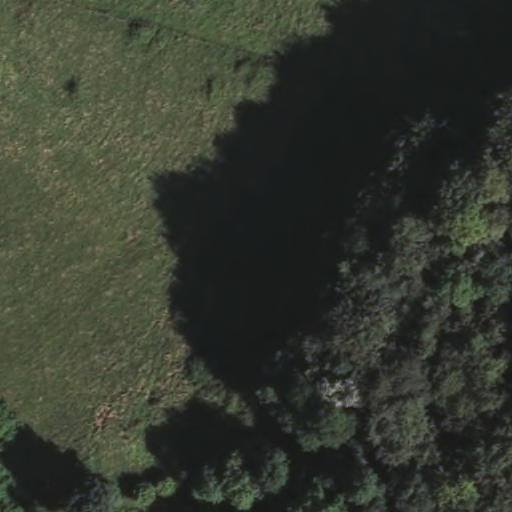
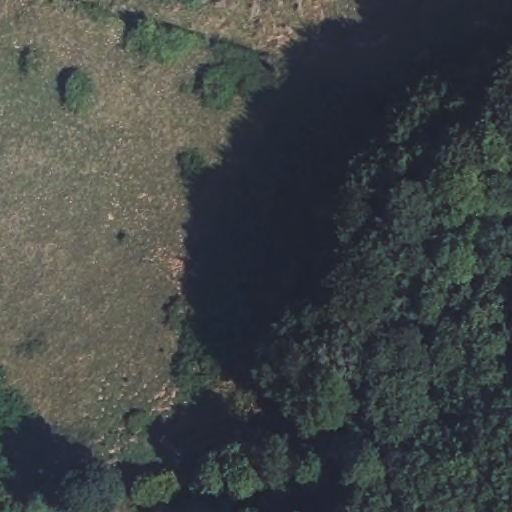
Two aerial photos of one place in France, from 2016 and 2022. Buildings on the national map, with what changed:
unchanged [(311,428),(332,431),(327,463),(288,456),(293,424),(311,428)]

